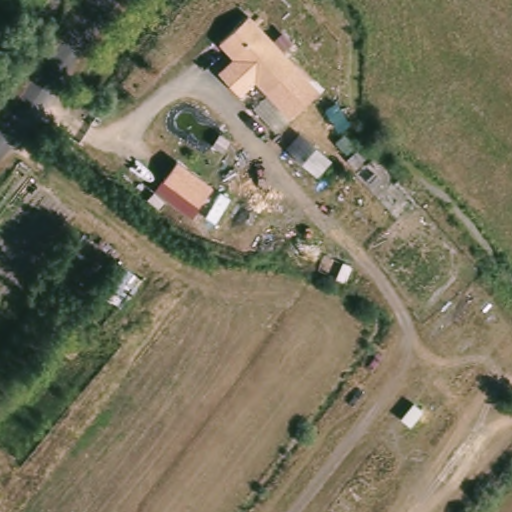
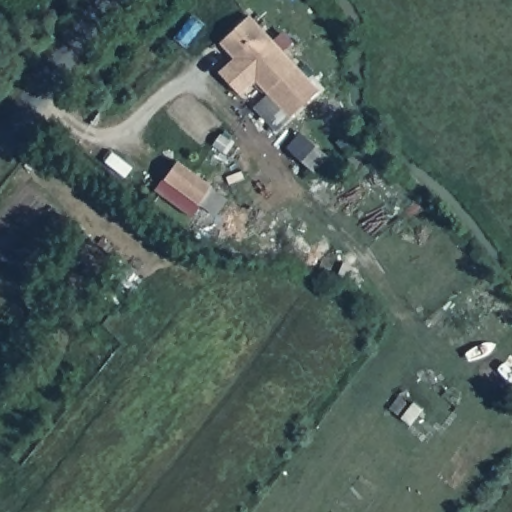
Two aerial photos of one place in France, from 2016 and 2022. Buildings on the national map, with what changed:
unchanged [(248,14),(318,90),(286,117),(253,79),(239,93),(218,71),(232,58),(218,41),(248,14)]
unchanged [(196,203),(163,178),(177,159),(211,183),(196,203)]

